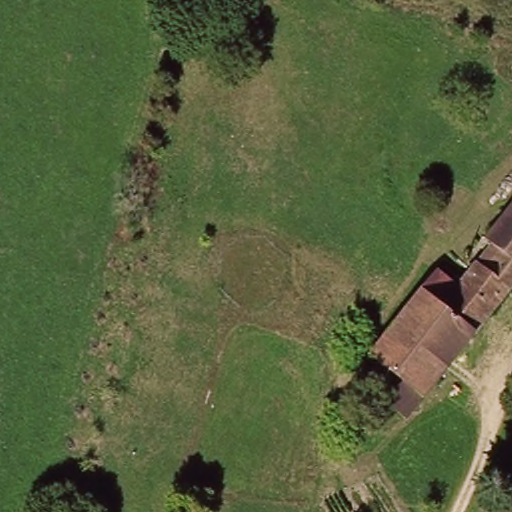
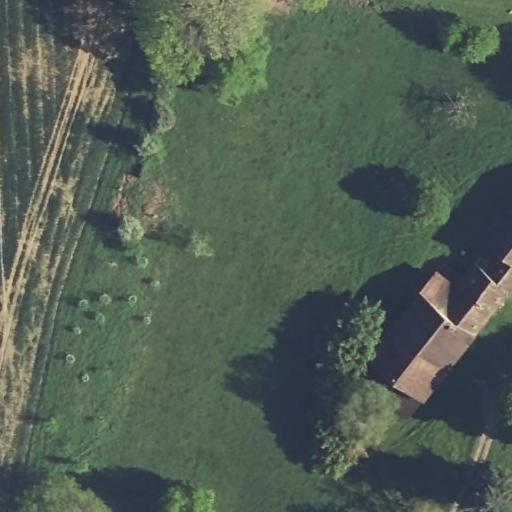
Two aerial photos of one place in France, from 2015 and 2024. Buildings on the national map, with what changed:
unchanged [(438,270),(459,285),(477,262),(472,257),(512,205),(512,281),(423,396),(419,393),(405,412),(388,399),(402,380),(372,358),(438,270)]

